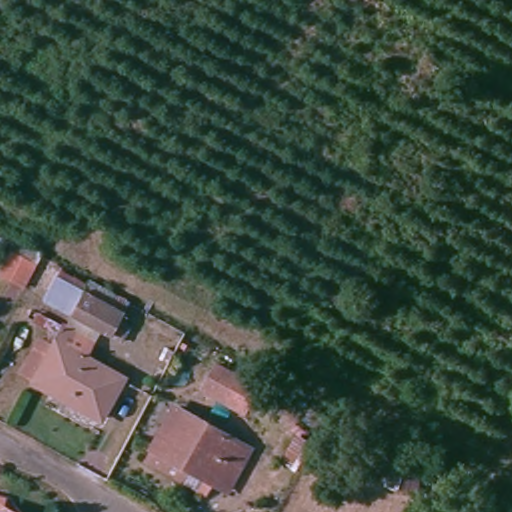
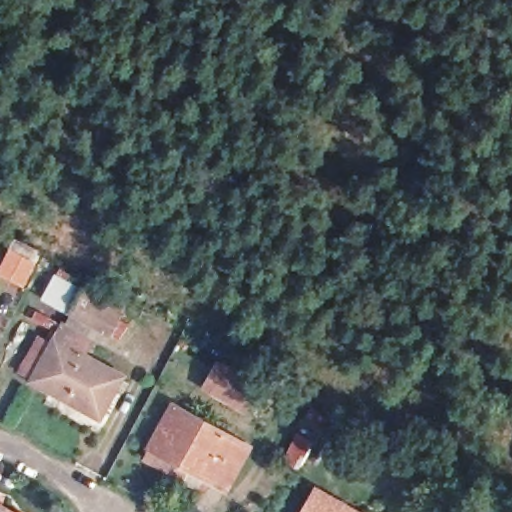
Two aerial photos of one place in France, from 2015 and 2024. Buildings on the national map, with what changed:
unchanged [(25,289),(1,277),(10,257),(0,252),(0,235),(43,255),(25,289)]
unchanged [(119,344),(104,335),(46,301),(59,280),(116,315),(112,321),(127,330),(119,344)]
unchanged [(34,386),(18,377),(36,343),(53,352),(64,331),(89,345),(79,362),(119,384),(98,422),(34,386)]
unchanged [(243,412),(201,390),(214,364),(229,372),(257,387),(243,412)]
unchanged [(250,450),(228,490),(153,450),(175,410),(250,450)]
unchanged [(320,455),(305,484),(290,476),(305,447),(320,455)]
new [(300,512),(316,485),(362,512),(300,512)]
unchanged [(0,512),(0,504),(2,504),(0,512)]

